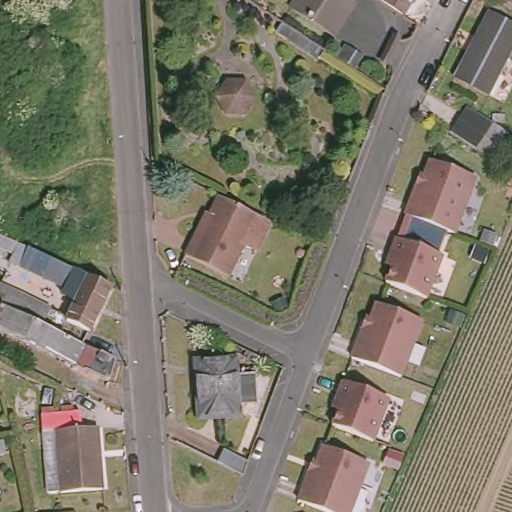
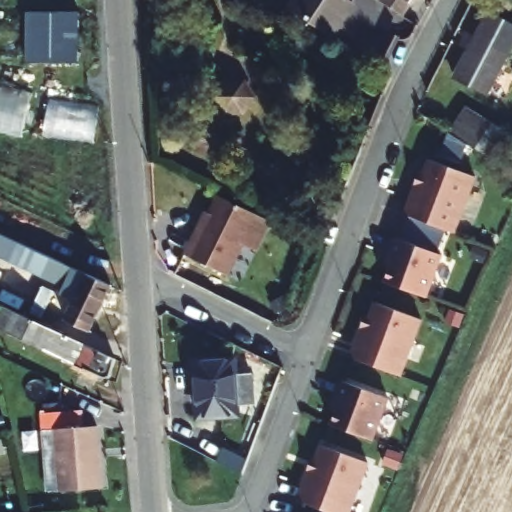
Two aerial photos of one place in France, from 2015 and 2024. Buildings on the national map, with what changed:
unchanged [(330,26),(327,31),(318,25),(293,9),(285,3),(286,0),(346,0),(330,26)]
unchanged [(378,0),(411,0),(401,16),(378,0)]
new [(26,63),(27,12),(80,13),(80,64),(26,63)]
unchanged [(454,78),(488,12),(512,24),(512,44),(486,94),(454,78)]
unchanged [(227,113),(215,93),(224,76),(248,74),(260,93),(247,112),(227,113)]
new [(36,92),(26,143),(0,135),(0,84),(36,92)]
new [(50,99),(100,107),(95,143),(43,137),(50,99)]
unchanged [(477,146),(493,122),(512,133),(512,142),(500,161),(477,146)]
unchanged [(422,178),(425,179),(435,153),(481,170),(460,226),(411,208),(422,178)]
unchanged [(253,211),(267,218),(252,248),(239,241),(223,272),(180,251),(188,235),(192,237),(214,192),(253,211)]
unchanged [(71,319),(78,306),(65,300),(68,294),(65,292),(68,286),(0,257),(0,234),(115,286),(93,330),(71,319)]
unchanged [(395,257),(390,255),(397,236),(443,253),(427,296),(387,280),(395,257)]
unchanged [(29,296),(42,303),(35,319),(27,315),(0,301),(0,282),(29,296)]
unchanged [(368,321),(372,322),(382,295),(427,312),(407,369),(369,355),(357,350),(368,321)]
unchanged [(18,335),(0,326),(0,301),(27,315),(18,335)]
unchanged [(35,319),(110,354),(104,372),(98,373),(18,335),(27,315),(35,319)]
unchanged [(212,357),(228,357),(229,369),(245,368),(247,396),(231,396),(232,408),(195,411),(192,365),(213,364),(212,357)]
unchanged [(346,395),(340,393),(347,374),(394,391),(378,433),(343,420),(337,418),(346,395)]
unchanged [(60,431),(48,432),(47,415),(85,411),(85,429),(100,428),(102,463),(105,463),(106,490),(64,493),(60,431)]
unchanged [(313,470),(323,444),(369,461),(350,512),(336,512),(298,498),(310,469),(313,470)]
unchanged [(241,473),(216,461),(222,448),(246,460),(241,473)]

